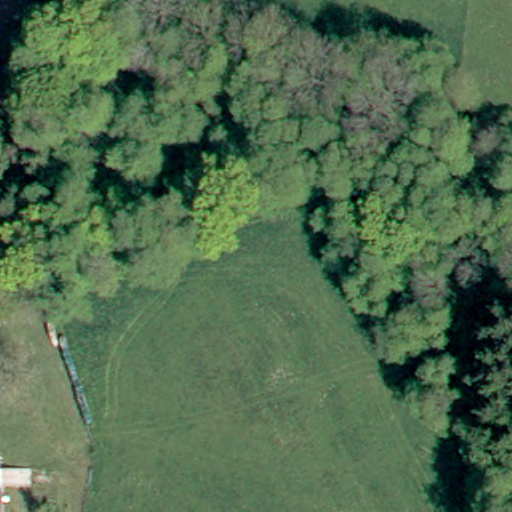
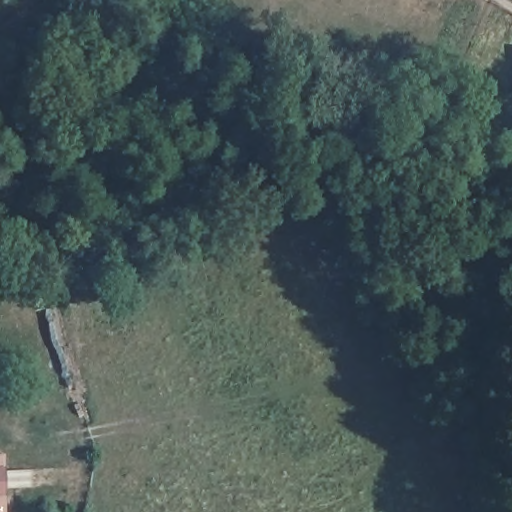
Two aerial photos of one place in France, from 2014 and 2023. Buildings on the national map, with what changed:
unchanged [(6,512),(0,512),(0,455),(5,455),(6,512)]

